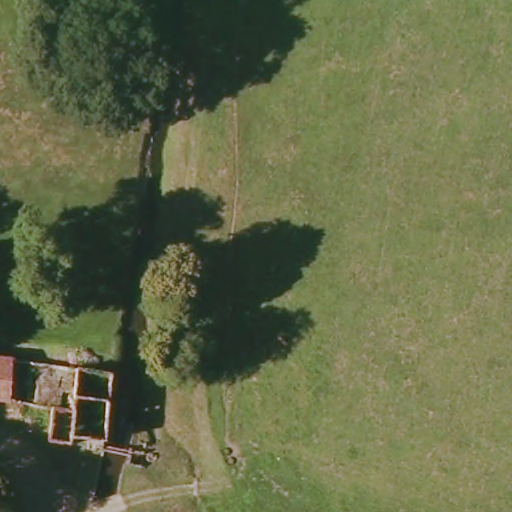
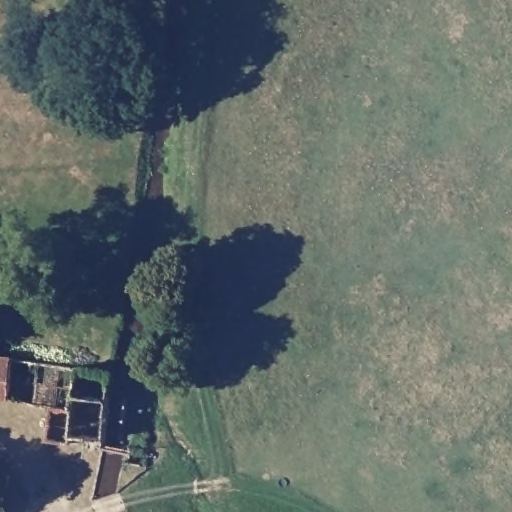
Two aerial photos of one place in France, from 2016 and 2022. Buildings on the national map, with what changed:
unchanged [(54,410),(0,402),(0,357),(81,357),(80,413),(54,410)]

